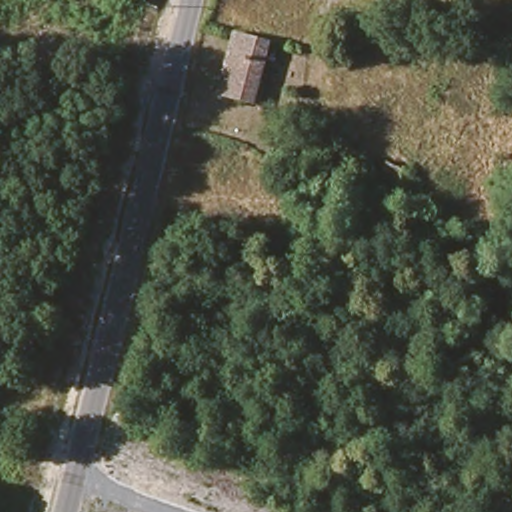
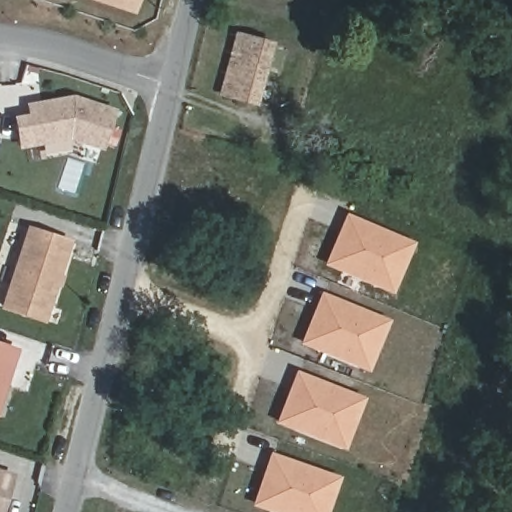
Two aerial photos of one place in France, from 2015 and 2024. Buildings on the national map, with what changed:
new [(134,10),(106,0),(137,0),(134,10)]
unchanged [(254,104),(217,94),(234,34),(270,43),(254,104)]
demolished [(507,70),(495,65),(504,45),(512,49),(512,59),(507,70)]
new [(24,104),(74,95),(117,109),(103,150),(71,139),(18,147),(12,116),(25,114),(24,104)]
new [(323,265),(346,213),(415,242),(393,295),(323,265)]
new [(64,240),(39,319),(0,306),(0,301),(24,227),(64,240)]
new [(299,344),(321,291),(391,320),(368,372),(299,344)]
new [(0,343),(17,348),(0,398),(0,343)]
new [(345,450),(275,422),(296,370),(366,397),(345,450)]
new [(271,512),(252,505),(270,452),(341,476),(328,512),(271,512)]
new [(0,512),(0,468),(15,473),(3,512),(0,512)]

